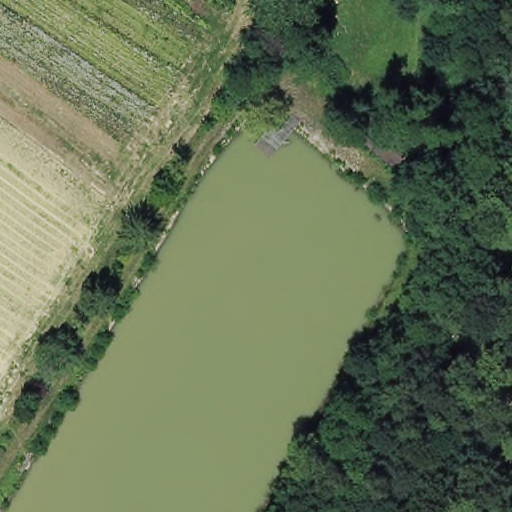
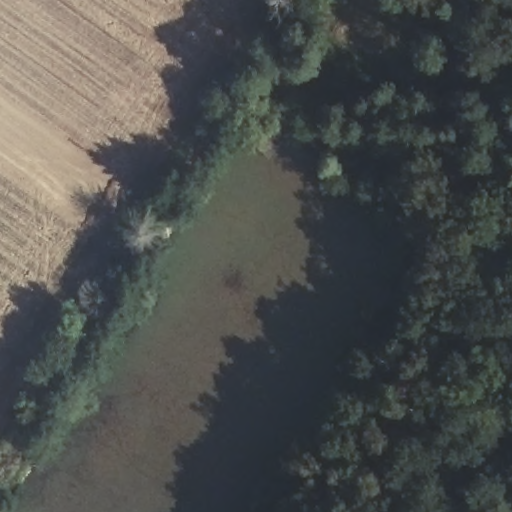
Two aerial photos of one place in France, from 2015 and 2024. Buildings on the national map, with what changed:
unchanged [(410,146),(392,167),(352,134),(368,113),(410,146)]

